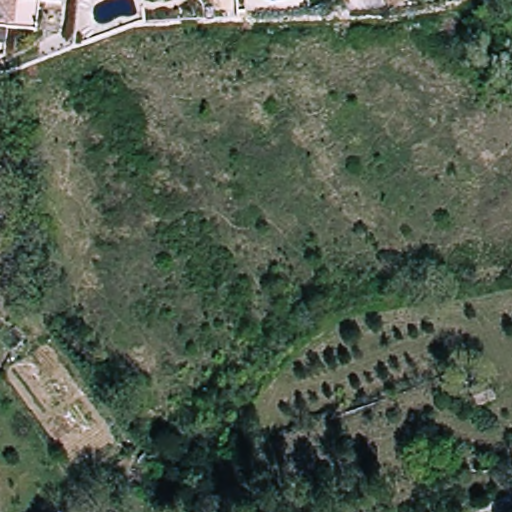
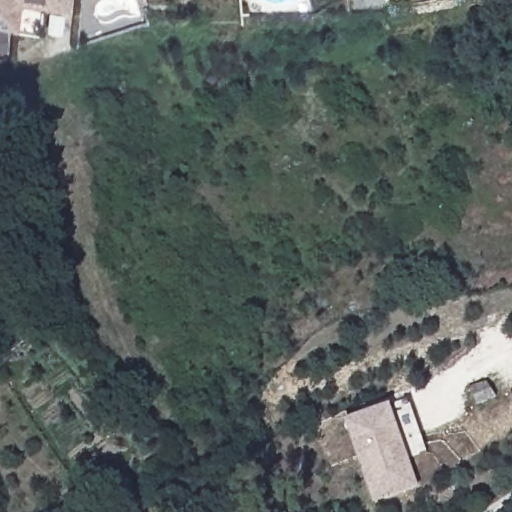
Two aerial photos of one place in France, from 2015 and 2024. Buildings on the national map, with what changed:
unchanged [(0,20),(0,0),(15,0),(12,21),(0,20)]
unchanged [(61,1),(48,0),(61,0),(61,1)]
unchanged [(490,386),(493,394),(497,403),(479,411),(471,394),(474,392),(490,386)]
new [(375,502),(346,420),(393,404),(393,405),(410,400),(427,451),(410,455),(420,487),(375,502)]

